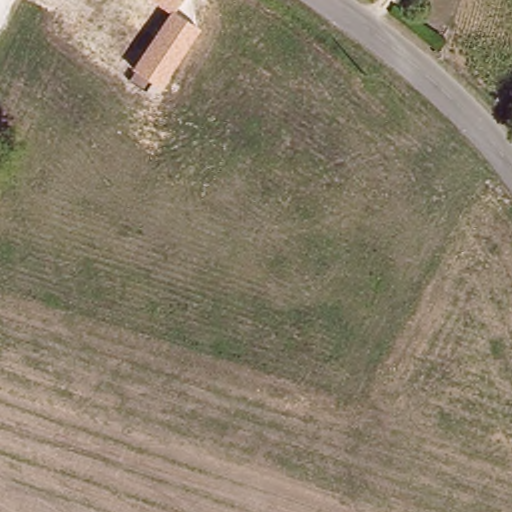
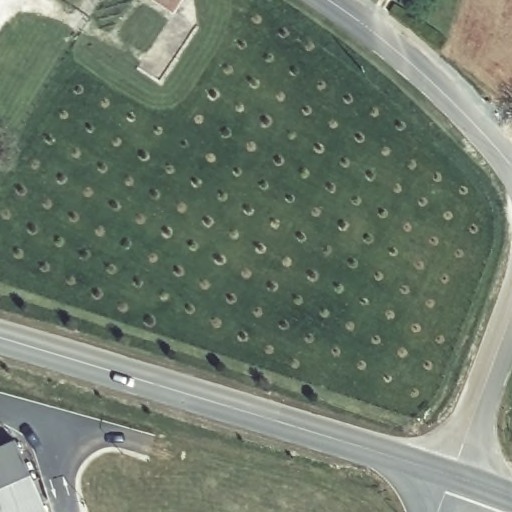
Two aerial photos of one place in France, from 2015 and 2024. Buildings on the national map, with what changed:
unchanged [(201,30),(160,91),(132,72),(171,14),(151,0),(183,0),(175,12),(201,30)]
new [(3,450),(20,445),(49,512),(0,512),(0,442),(3,450)]

